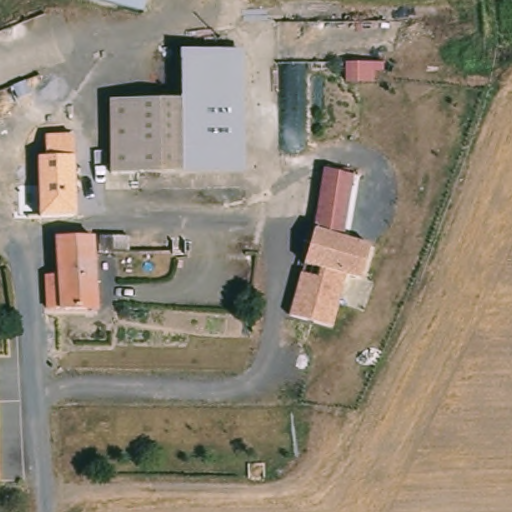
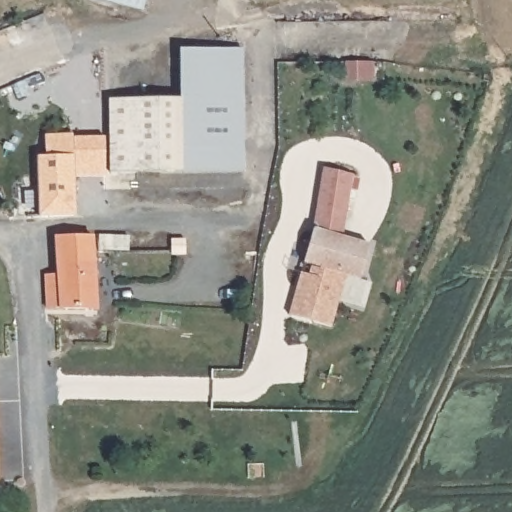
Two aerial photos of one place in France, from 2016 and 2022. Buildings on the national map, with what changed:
unchanged [(94,0),(150,0),(147,11),(94,0)]
unchanged [(186,100),(187,86),(188,51),(249,51),(247,159),(247,174),(105,169),(106,111),(143,100),(186,100)]
unchanged [(46,152),(47,134),(76,133),(80,214),(54,214),(30,214),(25,152),(46,152)]
unchanged [(330,174),(332,168),(364,175),(357,202),(347,242),(372,248),(363,284),(346,280),(333,325),(332,330),(293,319),(328,181),(330,174)]
unchanged [(94,237),(94,243),(97,300),(57,302),(53,302),(53,274),(60,273),(56,238),(94,237)]

